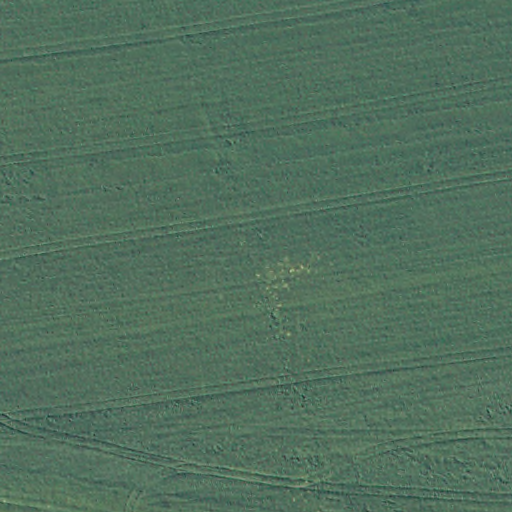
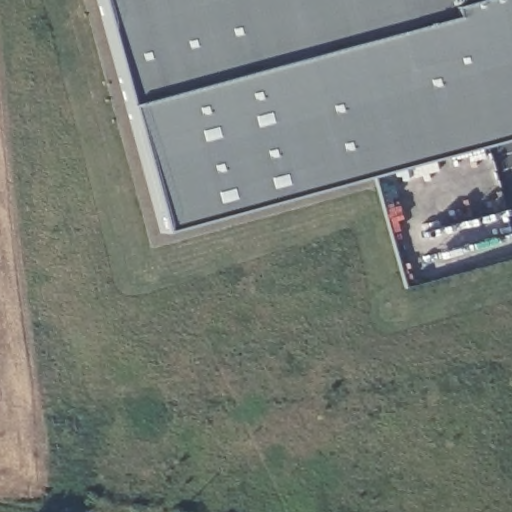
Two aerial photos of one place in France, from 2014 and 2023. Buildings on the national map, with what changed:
new [(512,0),(512,137),(161,232),(98,0),(512,0)]

